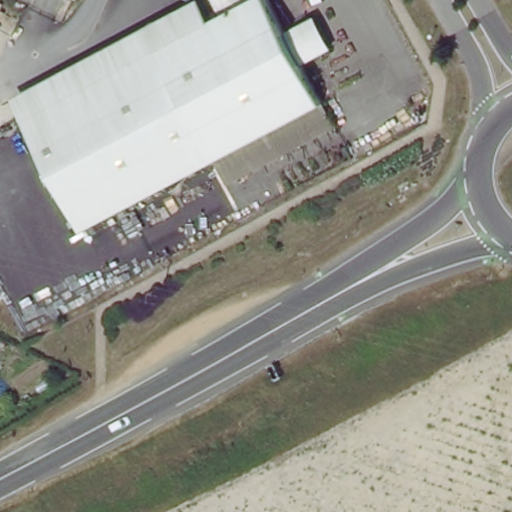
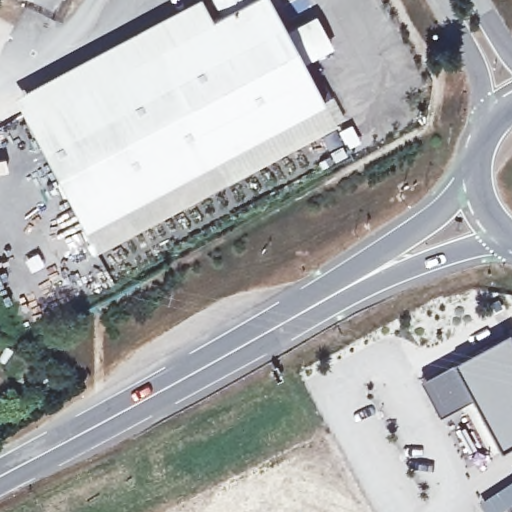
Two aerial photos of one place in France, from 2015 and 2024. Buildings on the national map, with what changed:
unchanged [(213,164),(86,231),(15,99),(199,0),(209,20),(219,15),(212,0),(270,0),(288,36),(316,19),(335,49),(301,68),(335,126),(225,184),(213,164)]
new [(438,415),(420,381),(452,363),(508,333),(512,341),(512,444),(500,451),(470,398),(438,415)]
new [(485,444),(460,458),(448,435),(473,421),(485,444)]
new [(500,512),(486,512),(480,504),(512,480),(512,504),(500,512)]

